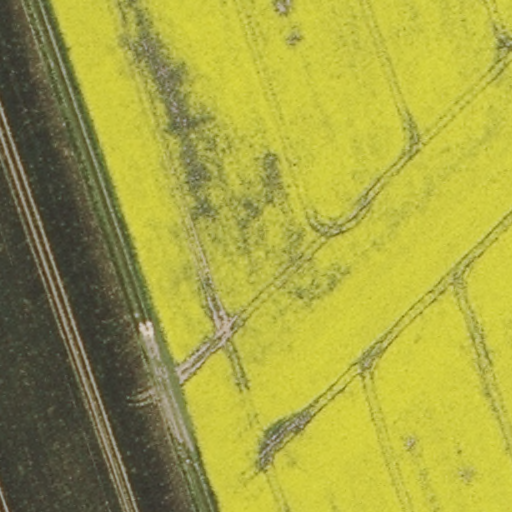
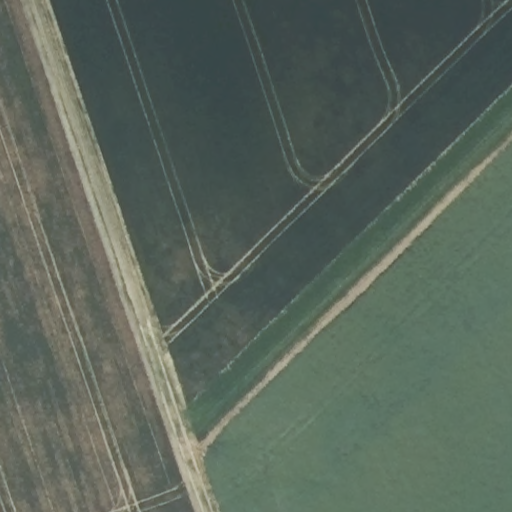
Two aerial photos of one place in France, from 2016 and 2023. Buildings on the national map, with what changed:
[]

